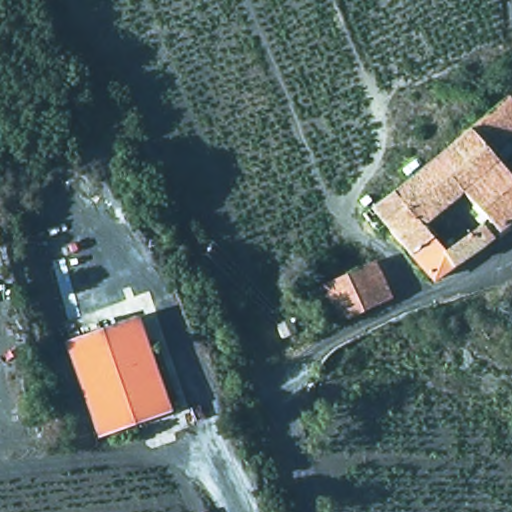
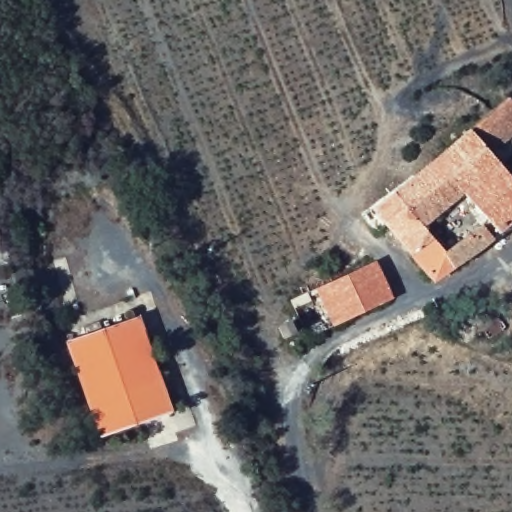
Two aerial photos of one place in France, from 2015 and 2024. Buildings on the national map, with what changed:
unchanged [(407,252),(385,225),(376,230),(363,214),(430,159),(507,95),(512,101),(512,136),(510,137),(512,141),(512,159),(506,164),(512,171),(512,221),(491,236),(452,265),(431,281),(407,252)]
unchanged [(315,288),(377,261),(395,301),(331,328),(315,288)]
unchanged [(139,316),(173,410),(103,436),(68,342),(139,316)]

